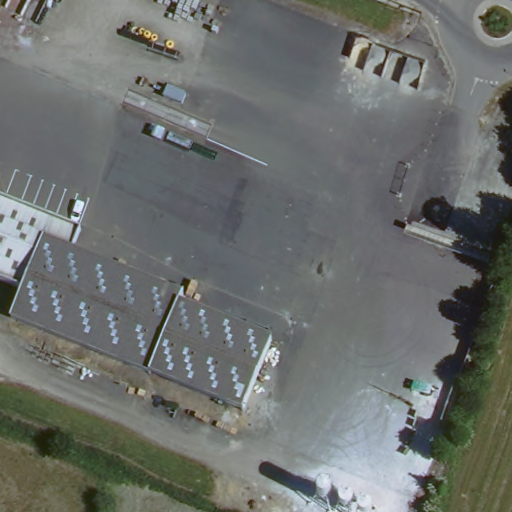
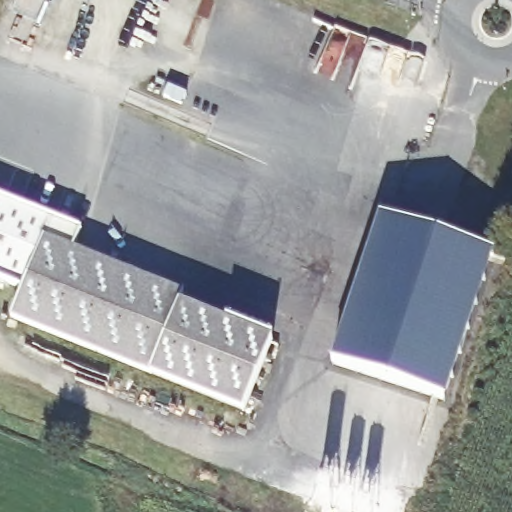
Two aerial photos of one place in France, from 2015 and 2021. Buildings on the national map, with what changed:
unchanged [(201,92),(182,87),(185,76),(204,81),(201,92)]
unchanged [(0,183),(0,180),(1,180),(0,183)]
unchanged [(185,301),(182,310),(274,349),(244,418),(14,320),(26,291),(0,280),(0,196),(84,232),(75,252),(185,301)]
new [(383,218),(493,255),(444,402),(334,365),(383,218)]

